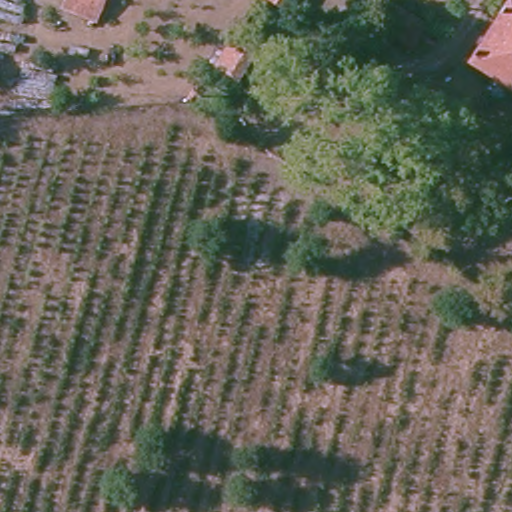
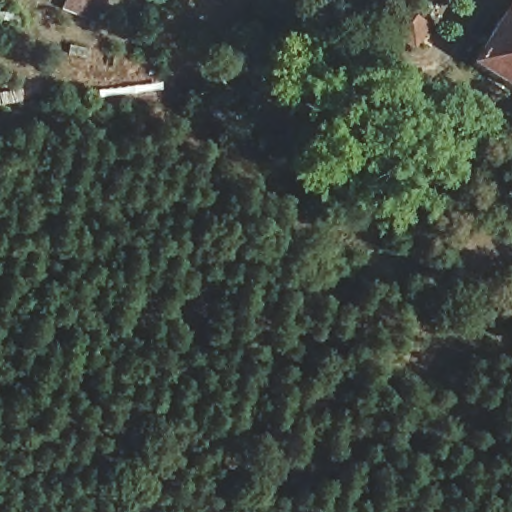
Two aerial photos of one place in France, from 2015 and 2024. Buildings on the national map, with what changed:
unchanged [(67,0),(108,0),(98,22),(64,10),(67,0)]
unchanged [(285,13),(264,0),(293,0),(285,13)]
unchanged [(381,41),(386,30),(372,21),(385,0),(448,0),(417,51),(411,61),(381,41)]
unchanged [(465,62),(505,0),(512,0),(512,95),(465,62)]

